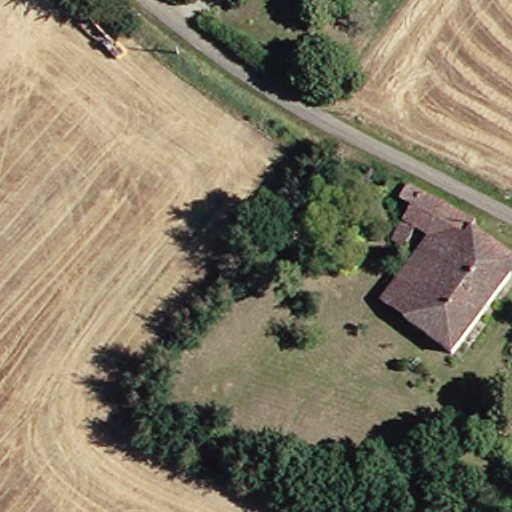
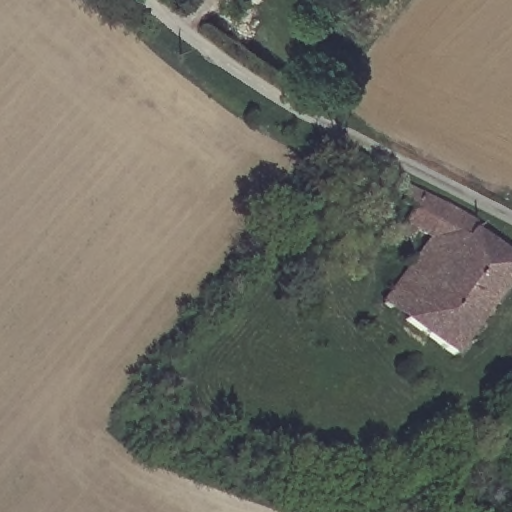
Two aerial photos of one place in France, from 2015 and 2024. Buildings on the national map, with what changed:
unchanged [(331,0),(339,0),(333,3),(331,0)]
unchanged [(414,254),(399,245),(425,212),(408,200),(413,193),(405,188),(407,185),(452,208),(430,235),(414,254)]
unchanged [(390,307),(439,242),(430,235),(452,208),(483,223),(478,230),(411,324),(390,307)]
unchanged [(512,289),(458,360),(411,324),(478,230),(512,255),(512,289)]

